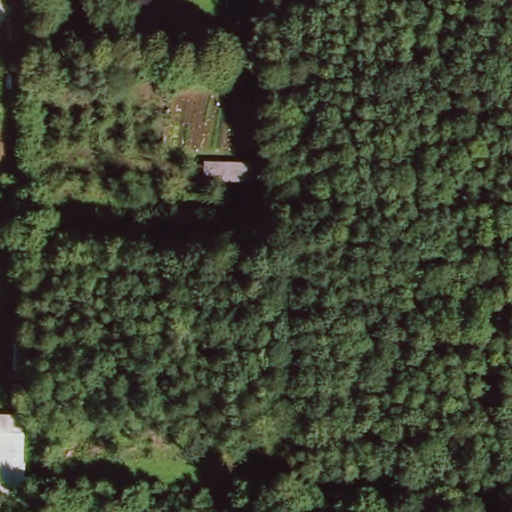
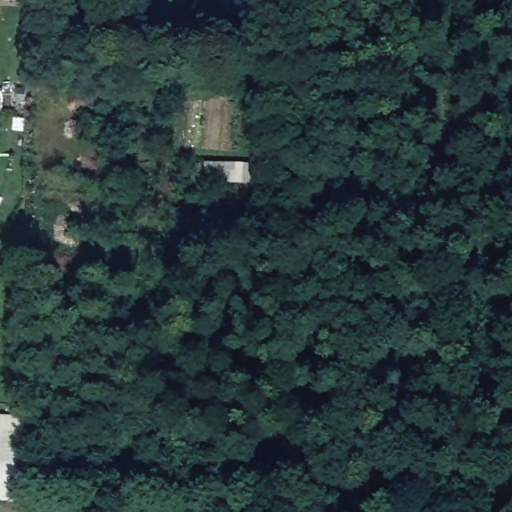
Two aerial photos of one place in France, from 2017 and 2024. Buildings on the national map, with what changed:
unchanged [(265,181),(201,183),(202,163),(265,162),(265,181)]
unchanged [(0,501),(0,437),(25,437),(27,503),(0,501)]

